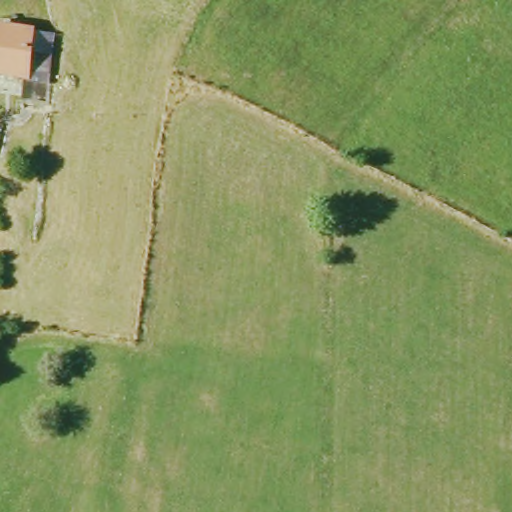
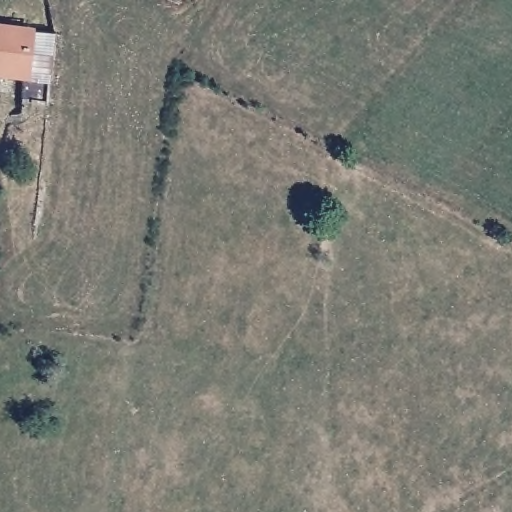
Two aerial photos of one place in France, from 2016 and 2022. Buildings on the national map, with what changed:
unchanged [(53,31),(45,99),(19,95),(21,73),(0,70),(0,24),(53,31)]

